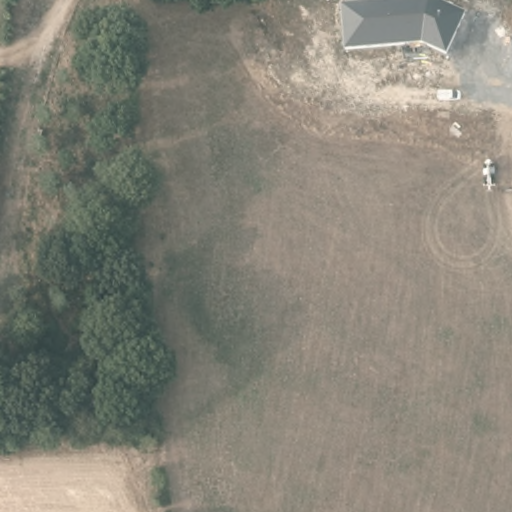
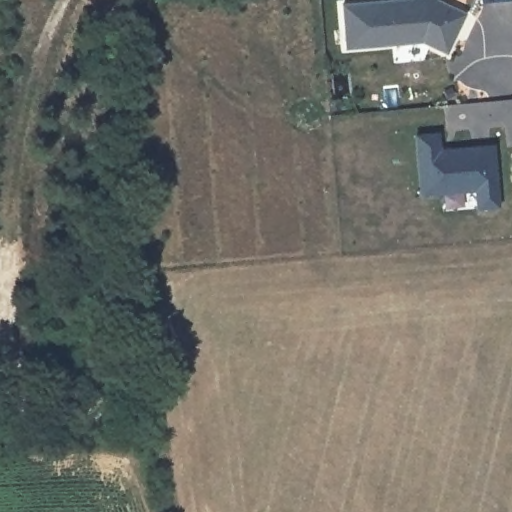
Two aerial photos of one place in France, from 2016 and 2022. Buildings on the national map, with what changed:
unchanged [(442,53),(419,43),(344,50),(341,0),(350,0),(437,0),(463,13),(442,53)]
new [(474,210),(472,192),(418,197),(411,134),(437,131),(439,149),(492,144),(498,207),(474,210)]

